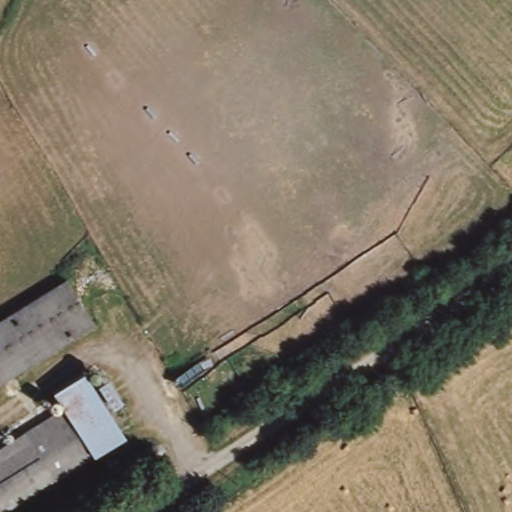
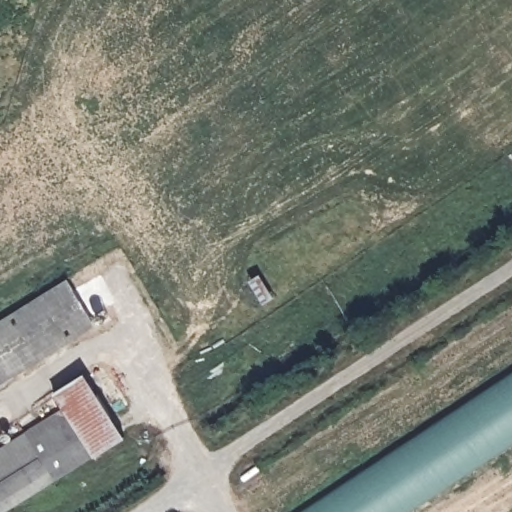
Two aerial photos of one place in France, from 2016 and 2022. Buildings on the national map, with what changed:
unchanged [(94,329),(0,385),(0,322),(66,282),(94,329)]
new [(415,512),(301,512),(512,374),(512,448),(415,512)]
unchanged [(51,395),(80,378),(118,440),(90,458),(61,413),(51,395)]
unchanged [(90,458),(0,512),(0,449),(61,413),(90,458)]

